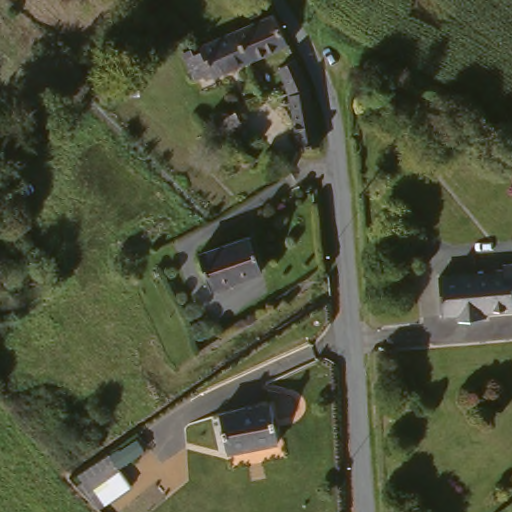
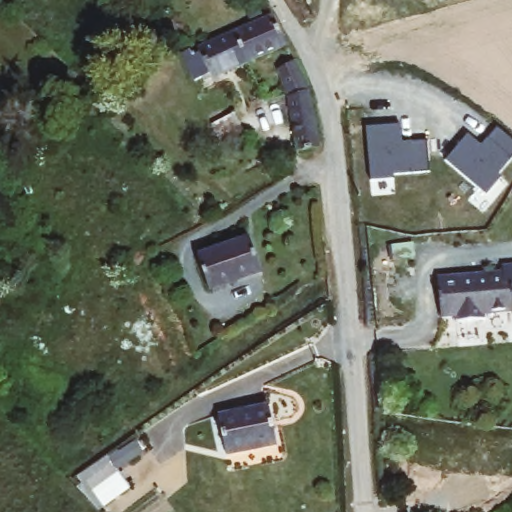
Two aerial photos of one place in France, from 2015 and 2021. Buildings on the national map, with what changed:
unchanged [(227,29),(256,14),(268,10),(284,45),(244,66),(227,29)]
unchanged [(204,79),(196,82),(184,57),(204,48),(201,44),(200,41),(227,29),(244,66),(219,78),(207,84),(204,79)]
unchanged [(324,143),(304,146),(293,95),(283,54),(301,50),(307,49),(315,90),(319,111),(324,143)]
unchanged [(246,100),(251,112),(257,124),(228,137),(217,115),(246,100)]
new [(367,124),(402,122),(402,140),(428,139),(429,171),(392,172),(393,176),(369,177),(367,124)]
new [(480,144),(496,124),(512,136),(512,155),(498,172),(502,175),(487,193),(445,160),(466,133),(480,144)]
unchanged [(247,232),(262,274),(210,292),(195,251),(247,232)]
unchanged [(509,266),(507,255),(512,255),(512,299),(486,301),(487,313),(461,315),(459,304),(442,306),(438,273),(509,266)]
unchanged [(276,445),(226,453),(224,455),(218,411),(271,403),(273,424),(276,445)]
new [(81,480),(76,471),(108,451),(109,453),(136,436),(144,448),(117,466),(130,485),(96,507),(73,485),(81,480)]

